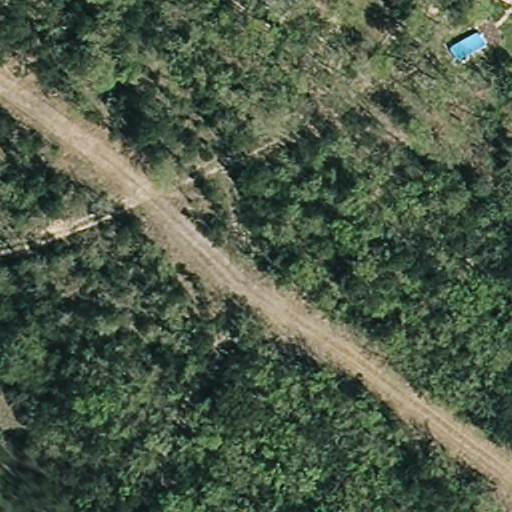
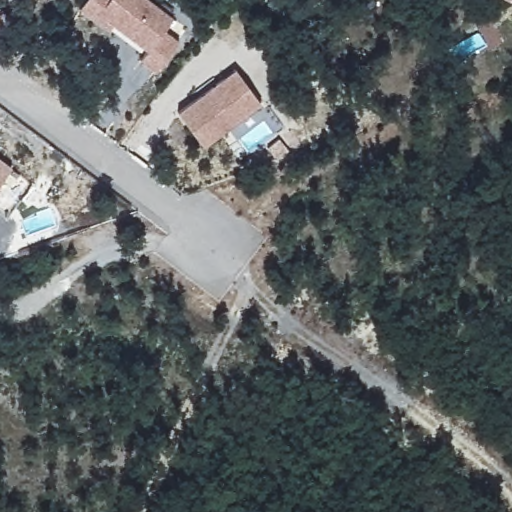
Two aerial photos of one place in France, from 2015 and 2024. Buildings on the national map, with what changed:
new [(173,17),(164,29),(180,41),(156,72),(140,60),(147,50),(114,25),(108,30),(79,7),(84,0),(150,0),(173,17)]
unchanged [(503,0),(512,0),(512,5),(503,0)]
new [(203,146),(178,111),(235,68),(261,104),(203,146)]
new [(11,166),(0,181),(0,158),(11,166)]

